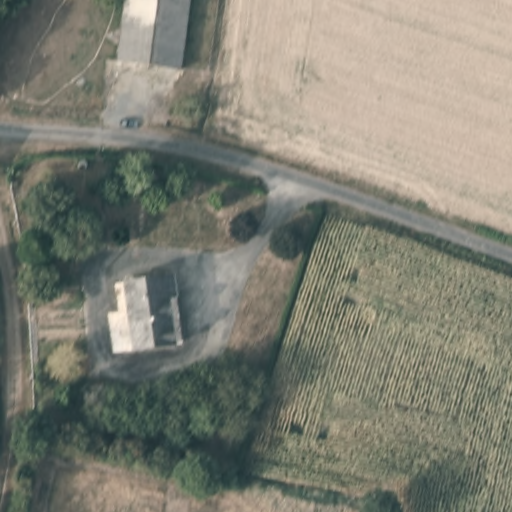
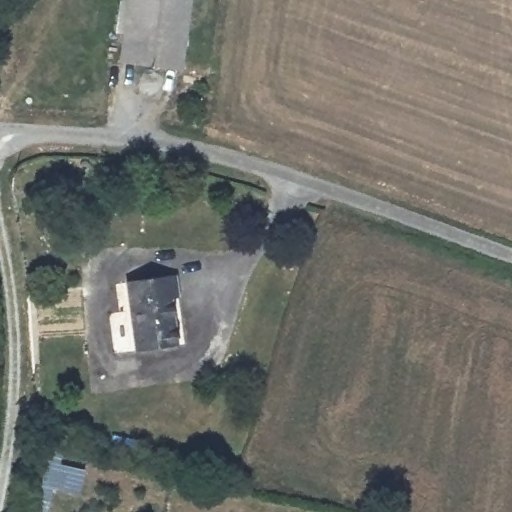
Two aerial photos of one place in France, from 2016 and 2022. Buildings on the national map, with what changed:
unchanged [(122,64),(131,0),(191,0),(182,69),(122,64)]
unchanged [(180,297),(171,297),(177,344),(137,349),(129,282),(176,276),(180,297)]

